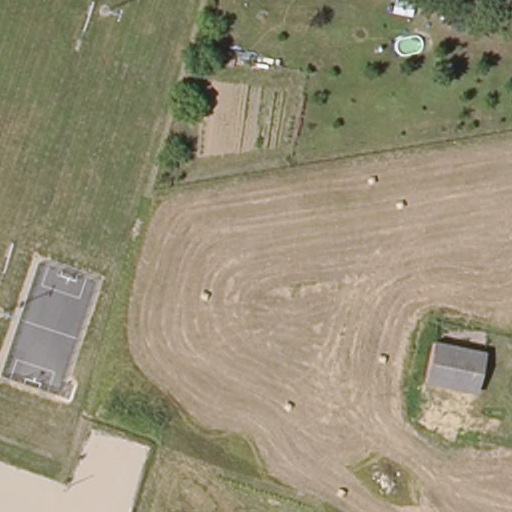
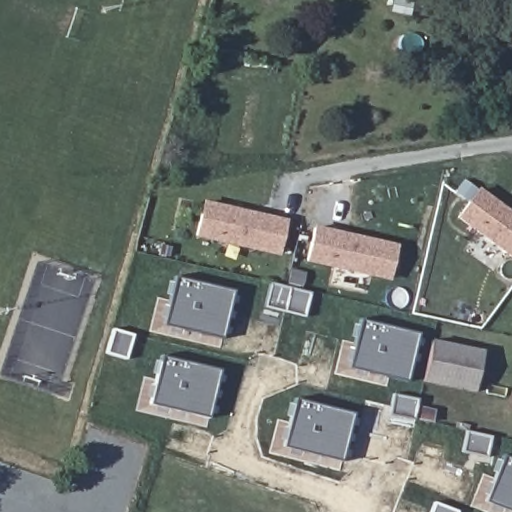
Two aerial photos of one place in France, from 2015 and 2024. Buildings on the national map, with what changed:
new [(512,259),(456,218),(478,186),(512,212),(512,259)]
new [(279,257),(194,237),(203,200),(287,219),(279,257)]
new [(398,244),(390,281),(306,263),(314,225),(398,244)]
new [(234,291),(225,336),(169,324),(179,279),(234,291)]
new [(417,334),(409,381),(352,370),(364,322),(417,334)]
unchanged [(480,389),(426,379),(434,335),(489,345),(480,389)]
new [(224,371),(214,420),(154,405),(163,358),(224,371)]
new [(352,415),(343,462),(286,448),(297,402),(352,415)]
new [(512,512),(490,504),(506,458),(512,461),(512,512)]

